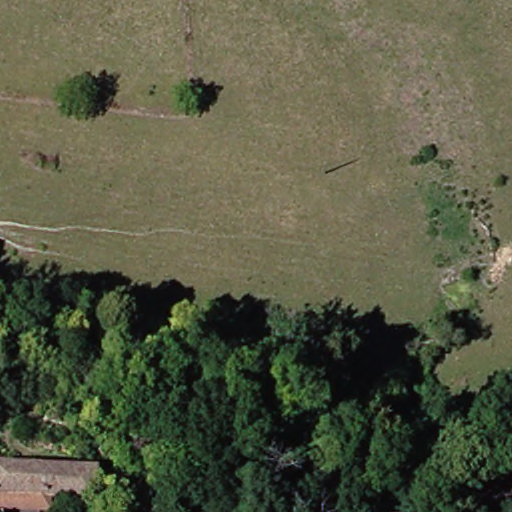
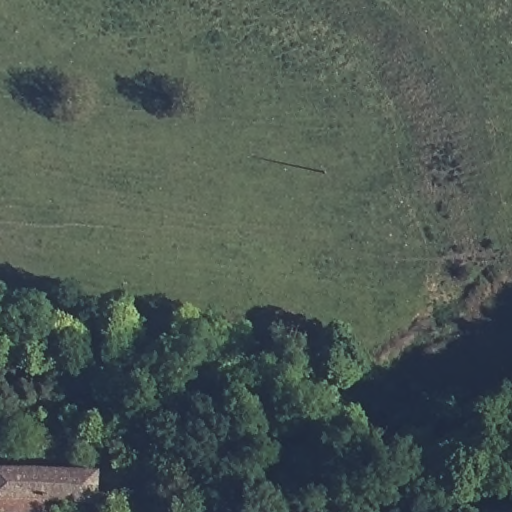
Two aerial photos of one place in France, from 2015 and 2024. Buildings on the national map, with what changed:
unchanged [(108,467),(109,512),(1,512),(4,465),(108,467)]

